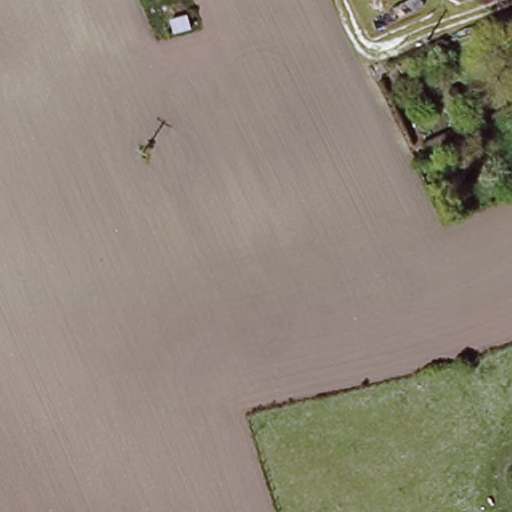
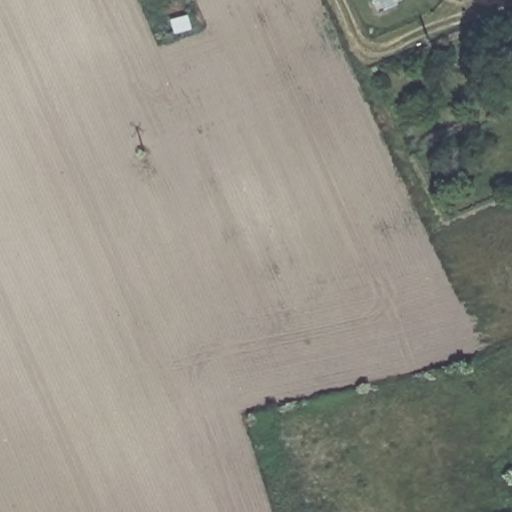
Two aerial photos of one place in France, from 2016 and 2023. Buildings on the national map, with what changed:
unchanged [(189,34),(162,40),(154,10),(182,4),(189,34)]
unchanged [(512,474),(512,480),(510,475),(512,474)]

